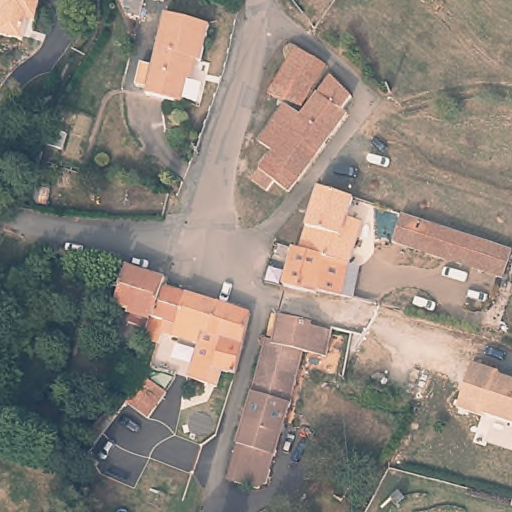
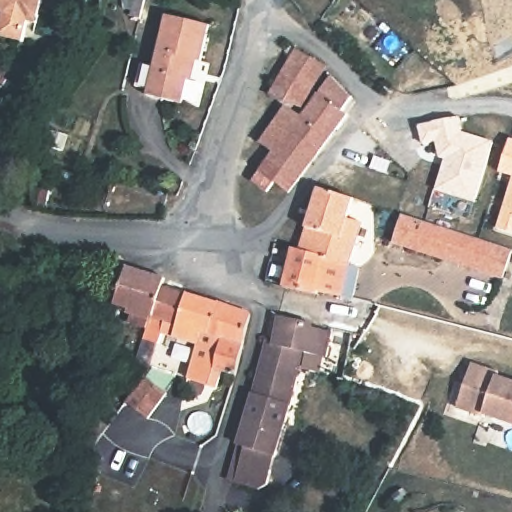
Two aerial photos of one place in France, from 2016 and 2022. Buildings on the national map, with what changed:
unchanged [(0,0),(44,0),(38,26),(30,25),(24,50),(0,44),(0,42),(5,21),(0,19),(0,0)]
unchanged [(166,12),(209,21),(202,58),(191,57),(187,74),(189,75),(185,99),(160,94),(149,92),(151,85),(166,12)]
unchanged [(272,91),(286,70),(302,46),(332,64),(314,89),(303,105),(272,91)]
unchanged [(262,166),(269,157),(274,151),(259,141),(287,105),(304,114),(321,92),(327,82),(334,74),(358,94),(350,108),(355,111),(300,179),(291,190),(275,178),(265,188),(253,177),(262,166)]
new [(440,159),(435,141),(422,144),(418,125),(459,117),(462,129),(493,139),(475,201),(436,190),(444,159),(440,159)]
new [(497,228),(511,176),(498,172),(508,136),(512,137),(512,232),(497,228)]
unchanged [(344,214),(358,219),(348,264),(332,260),(324,256),(311,252),(298,249),(305,218),(314,185),(315,184),(350,194),(344,214)]
unchanged [(456,263),(396,246),(405,217),(464,234),(456,263)]
unchanged [(507,276),(456,263),(464,234),(512,246),(512,255),(507,276)]
unchanged [(294,247),(298,249),(311,252),(324,256),(332,260),(348,264),(339,297),(316,291),(315,293),(283,284),(294,247)]
unchanged [(155,345),(148,370),(141,367),(155,320),(116,309),(127,271),(129,269),(166,279),(164,288),(186,294),(219,303),(208,337),(202,335),(199,344),(162,333),(159,345),(155,345)]
unchanged [(223,368),(218,384),(190,377),(199,344),(202,335),(208,337),(219,303),(254,312),(250,331),(244,354),(237,372),(223,368)]
unchanged [(261,489),(239,483),(249,444),(240,441),(254,400),(271,336),(278,338),(286,313),(313,321),(316,325),(336,331),(329,354),(305,346),(300,368),(276,464),(271,483),(261,489)]
unchanged [(501,376),(499,380),(512,384),(512,428),(486,419),(485,420),(459,411),(474,366),(501,376)]
unchanged [(153,419),(130,403),(129,405),(118,397),(126,386),(137,393),(149,376),(172,394),(153,419)]
unchanged [(98,418),(103,413),(112,419),(108,425),(98,418)]
unchanged [(80,465),(76,471),(70,467),(73,461),(81,464),(80,465)]

